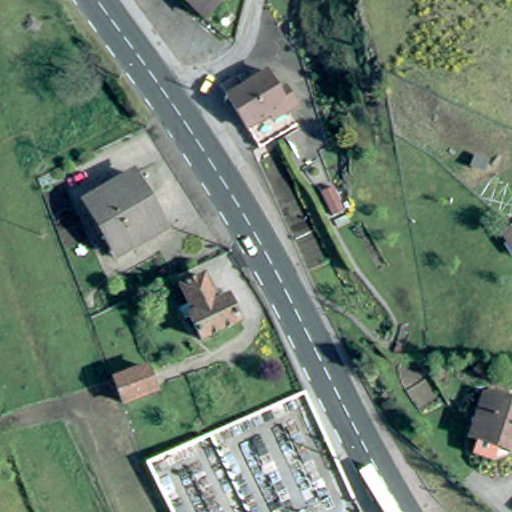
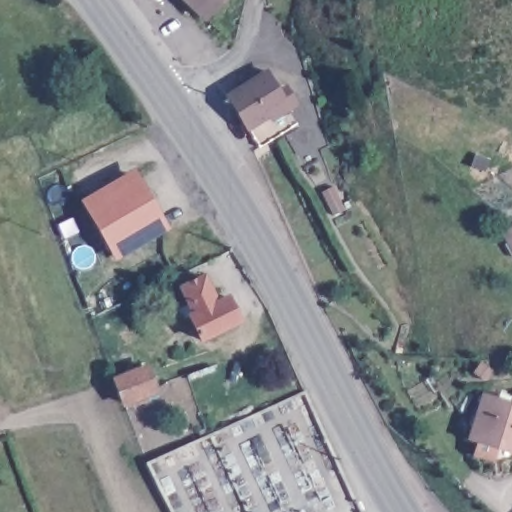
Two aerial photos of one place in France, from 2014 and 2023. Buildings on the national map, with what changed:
unchanged [(198,22),(176,0),(219,0),(198,22)]
unchanged [(255,146),(243,127),(222,94),(261,69),(274,90),(281,85),(293,104),(280,112),(289,125),(255,146)]
unchanged [(158,226),(112,254),(81,202),(128,174),(158,226)]
unchanged [(512,234),(512,240),(509,236),(512,234)]
unchanged [(222,301),(232,296),(245,320),(206,340),(195,315),(190,317),(185,307),(195,303),(186,288),(209,276),(222,301)]
unchanged [(152,389),(120,402),(118,395),(111,379),(143,366),(152,389)]
unchanged [(480,382),(471,376),(477,368),(486,374),(480,382)]
unchanged [(465,441),(479,399),(480,399),(483,390),(510,399),(507,408),(512,410),(512,456),(494,451),(465,441)]

